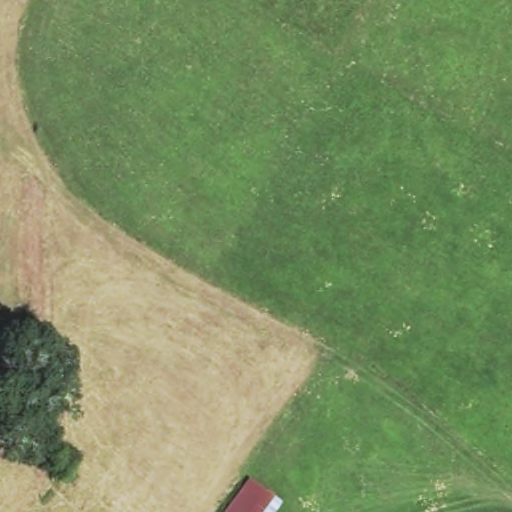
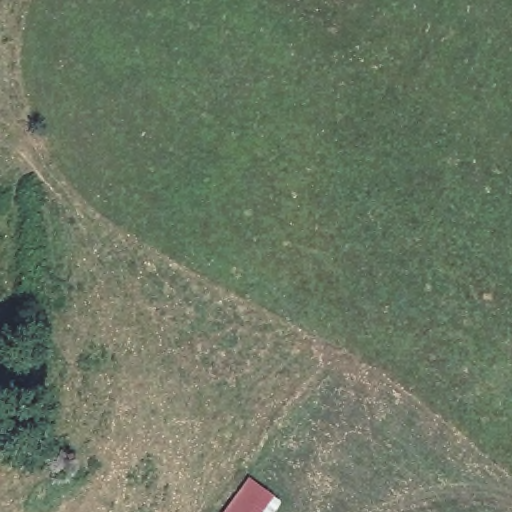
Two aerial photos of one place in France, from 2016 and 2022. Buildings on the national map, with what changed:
unchanged [(276,499),(267,512),(218,512),(244,477),(276,499)]

